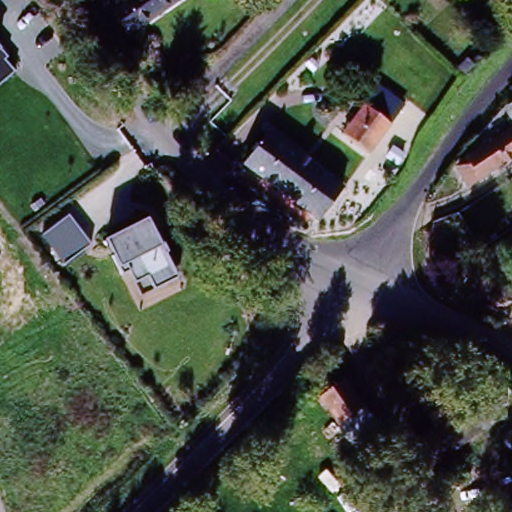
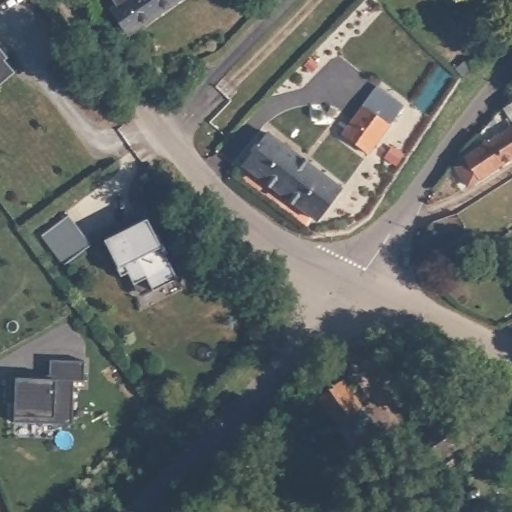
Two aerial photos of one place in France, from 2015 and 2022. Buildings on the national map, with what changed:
unchanged [(176,0),(126,34),(111,11),(116,8),(128,0),(176,0)]
unchanged [(112,0),(128,0),(116,8),(112,0)]
unchanged [(1,64),(10,76),(0,83),(0,50),(7,59),(1,64)]
unchanged [(389,74),(401,84),(392,96),(401,103),(352,161),(332,146),(389,74)]
unchanged [(476,181),(467,186),(458,172),(468,164),(466,160),(512,130),(512,158),(496,168),(476,181)]
unchanged [(268,134),(339,189),(313,221),(243,168),(268,134)]
unchanged [(88,249),(62,265),(41,234),(66,217),(88,249)]
unchanged [(177,278),(136,297),(126,274),(121,276),(105,240),(146,219),(177,278)]
new [(31,377),(31,374),(45,374),(50,374),(50,359),(85,359),(85,380),(75,379),(73,423),(54,423),(54,417),(35,416),(35,422),(14,421),(15,399),(10,398),(10,376),(45,377),(31,377)]
unchanged [(363,408),(337,429),(315,401),(340,379),(363,408)]
unchanged [(430,470),(416,453),(411,446),(507,379),(512,385),(512,410),(430,470)]

